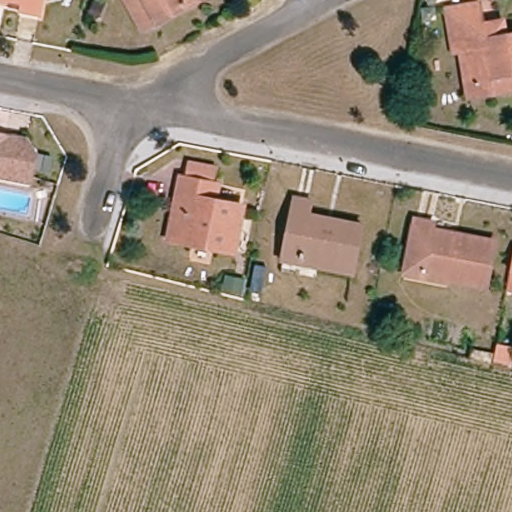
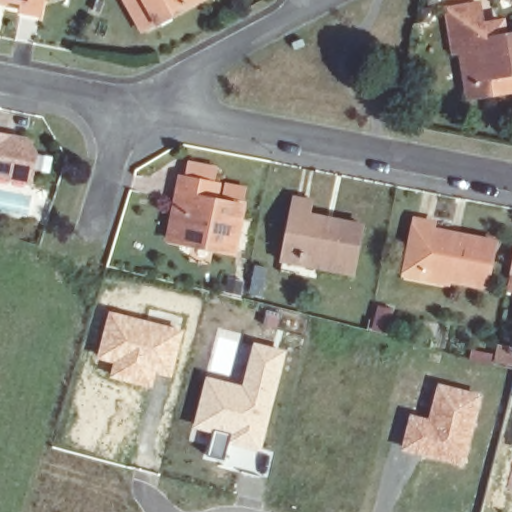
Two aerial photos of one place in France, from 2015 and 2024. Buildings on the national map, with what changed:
unchanged [(0,7),(0,0),(44,0),(42,14),(0,7)]
unchanged [(152,19),(155,25),(141,33),(122,0),(201,0),(170,17),(167,11),(152,19)]
unchanged [(479,0),(483,0),(487,25),(483,26),(485,37),(456,41),(448,5),(479,0)]
unchanged [(462,54),(457,54),(456,41),(485,37),(483,26),(487,25),(509,21),(510,34),(512,34),(512,93),(469,99),(462,54)]
unchanged [(17,144),(25,157),(16,186),(0,183),(0,140),(17,144)]
unchanged [(218,243),(184,235),(193,195),(180,193),(184,178),(220,184),(219,200),(243,205),(234,255),(216,252),(218,243)]
unchanged [(215,256),(171,246),(180,193),(193,195),(184,235),(218,243),(216,252),(215,256)]
unchanged [(280,265),(281,259),(292,200),(308,203),(306,220),(357,232),(351,273),(350,279),(280,265)]
unchanged [(404,288),(406,274),(415,222),(435,224),(434,230),(463,236),(496,242),(486,289),(450,282),(447,294),(404,288)]
new [(108,310),(184,328),(171,378),(155,374),(152,389),(109,377),(112,364),(95,359),(108,310)]
new [(205,375),(241,384),(253,340),(288,350),(260,452),(228,443),(223,459),(206,455),(212,434),(191,429),(205,375)]
new [(494,353),(496,342),(512,345),(512,367),(468,361),(471,348),(494,353)]
new [(409,413),(427,417),(437,381),(484,394),(463,467),(399,450),(409,413)]

